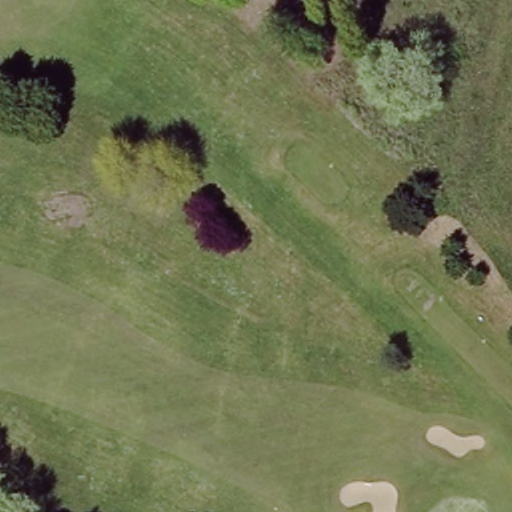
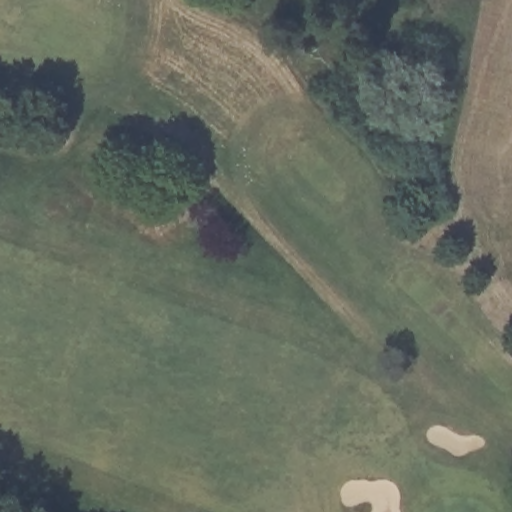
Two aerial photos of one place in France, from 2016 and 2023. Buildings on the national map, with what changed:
[]

